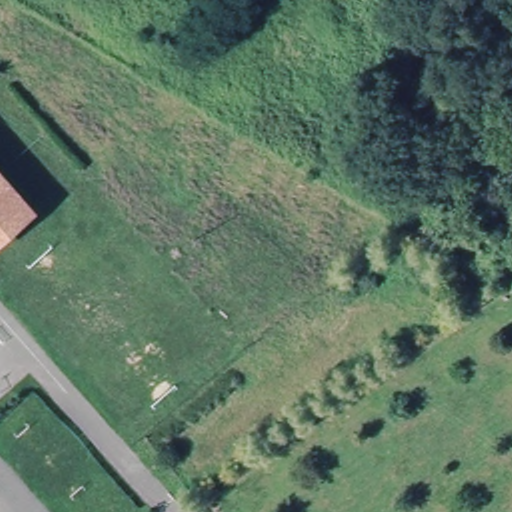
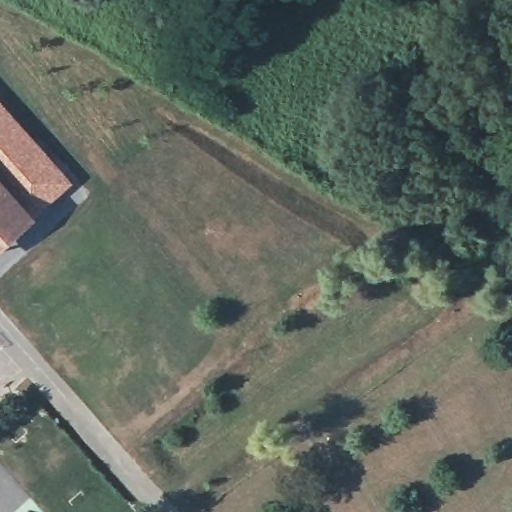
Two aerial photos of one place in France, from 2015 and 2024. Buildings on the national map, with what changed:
new [(57,195),(58,196),(43,209),(42,208),(30,218),(0,182),(0,105),(68,185),(57,195)]
unchanged [(0,243),(0,182),(30,218),(0,243)]

